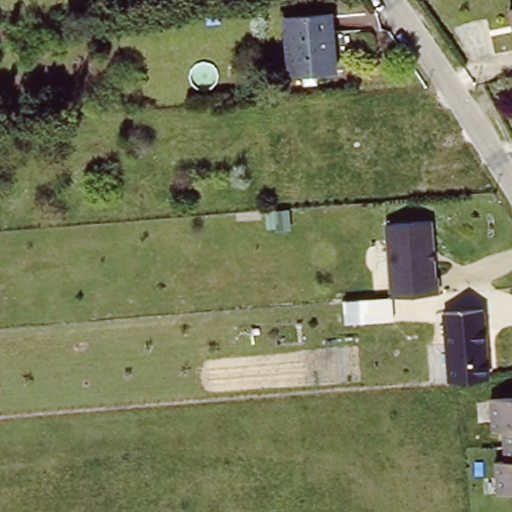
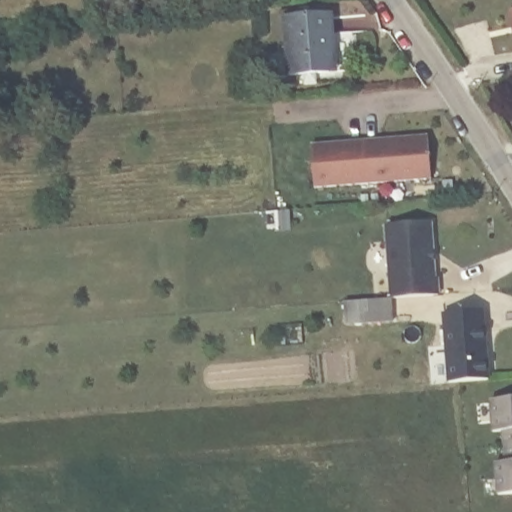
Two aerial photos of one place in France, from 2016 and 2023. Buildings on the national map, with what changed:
unchanged [(282,20),(319,17),(329,17),(331,45),(331,70),(321,71),(286,72),(284,47),(282,20)]
new [(434,179),(316,186),(313,144),(428,135),(434,179)]
demolished [(375,196),(373,160),(371,138),(402,136),(403,159),(404,195),(375,196)]
unchanged [(434,275),(439,275),(441,290),(390,293),(387,222),(432,219),(434,275)]
unchanged [(484,307),(489,377),(449,380),(444,309),(484,307)]
unchanged [(493,433),(494,401),(512,400),(512,433),(502,433),(493,433)]
unchanged [(512,463),(502,463),(502,433),(512,433),(512,463)]
unchanged [(512,496),(497,497),(496,463),(502,463),(512,463),(512,496)]

